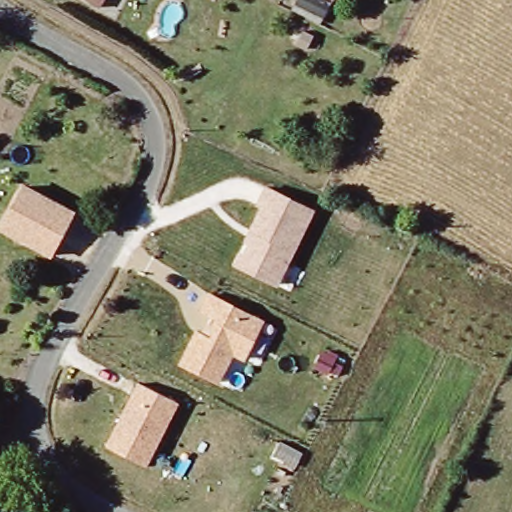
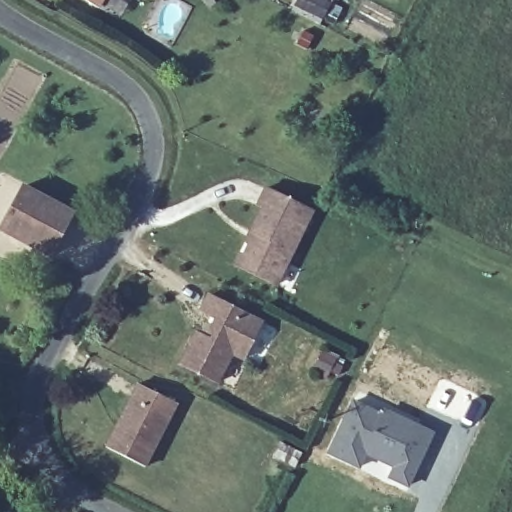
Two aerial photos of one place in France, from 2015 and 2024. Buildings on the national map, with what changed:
unchanged [(99,10),(82,0),(105,0),(99,10)]
unchanged [(51,258),(0,230),(0,224),(23,183),(76,212),(51,258)]
unchanged [(241,253),(246,243),(243,242),(260,207),(255,204),(265,185),(316,210),(277,287),(231,264),(238,252),(241,253)]
unchanged [(208,336),(215,318),(199,310),(208,292),(265,320),(245,361),(234,356),(218,385),(177,365),(196,331),(208,336)]
new [(322,348),(339,356),(338,359),(345,362),(339,375),(331,372),(330,375),(313,367),(322,348)]
unchanged [(179,404),(146,467),(105,445),(137,382),(179,404)]
new [(353,398),(380,408),(393,411),(436,430),(409,488),(386,478),(391,468),(370,459),(361,470),(325,453),(353,398)]

